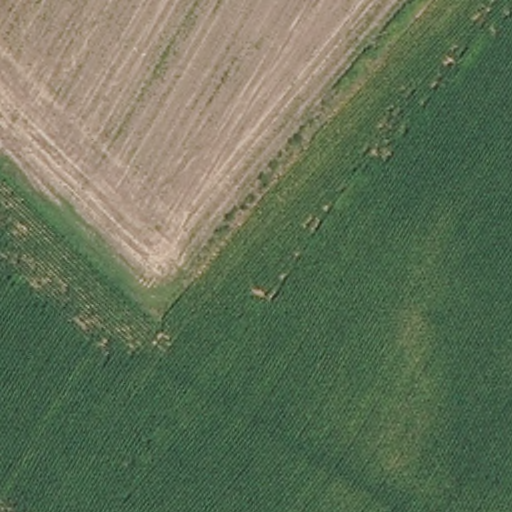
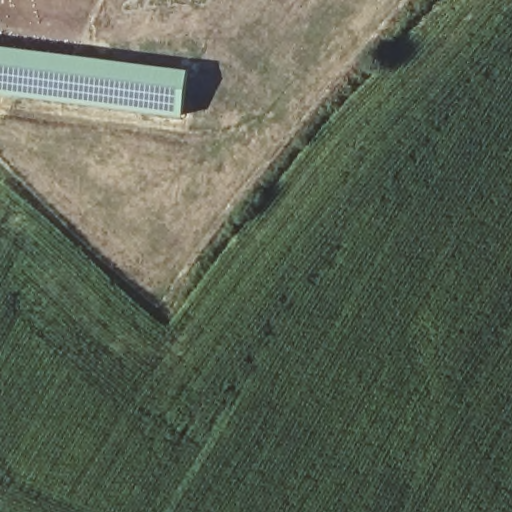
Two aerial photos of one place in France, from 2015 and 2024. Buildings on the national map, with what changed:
new [(190,69),(185,117),(0,94),(0,45),(190,69)]

